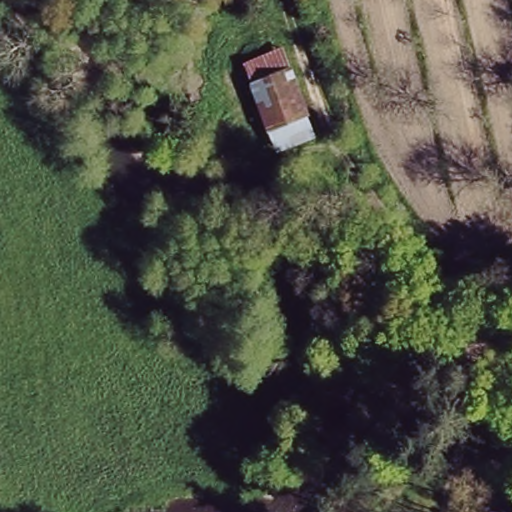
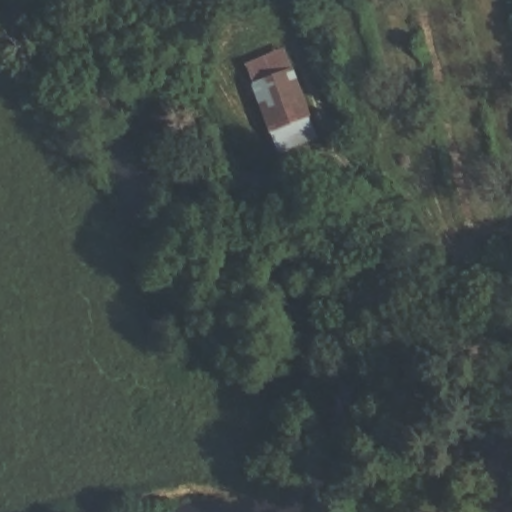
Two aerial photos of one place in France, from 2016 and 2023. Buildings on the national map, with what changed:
unchanged [(242,64),(282,47),(317,142),(276,156),(242,64)]

